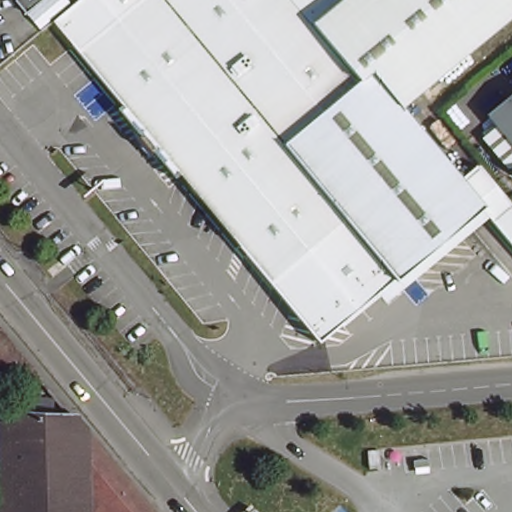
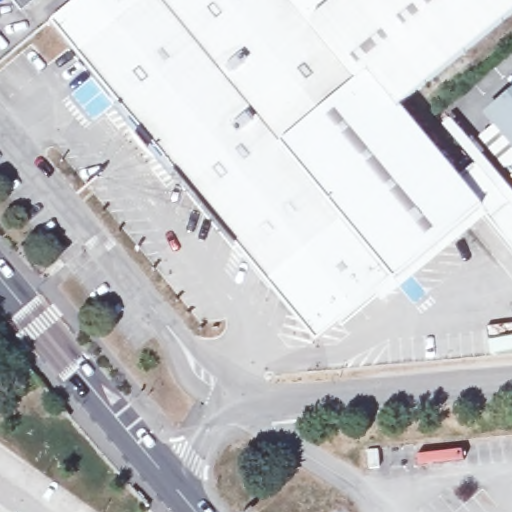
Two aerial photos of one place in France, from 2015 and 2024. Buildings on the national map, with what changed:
unchanged [(22,13),(11,0),(38,0),(22,13)]
unchanged [(404,111),(487,210),(401,281),(324,345),(272,283),(185,177),(180,182),(121,112),(126,109),(80,56),(52,24),(80,0),(342,0),(344,2),(422,95),(404,111)]
unchanged [(344,2),(347,0),(512,0),(512,19),(422,95),(344,2)]
unchanged [(512,94),(512,150),(485,117),(512,94)]
demolished [(83,512),(0,512),(0,418),(25,417),(24,400),(45,401),(45,417),(66,417),(68,421),(72,417),(118,473),(82,505),(83,512)]
unchanged [(365,471),(355,471),(352,452),(363,452),(365,471)]
demolished [(141,512),(148,507),(152,512),(141,512)]

